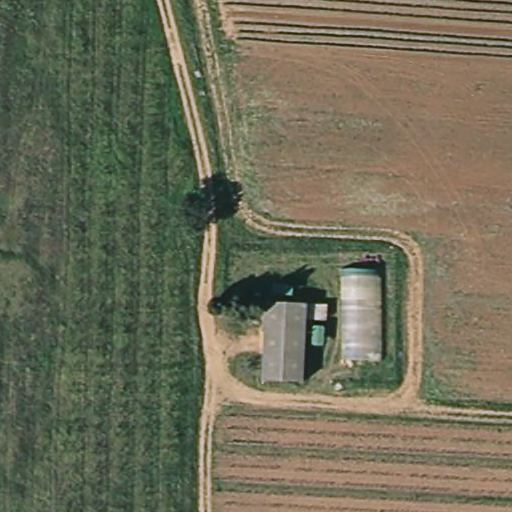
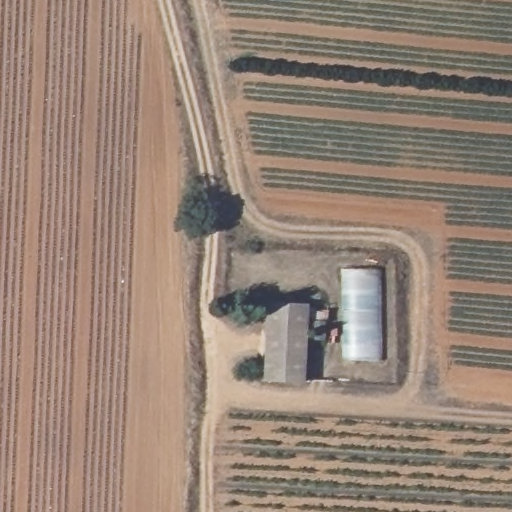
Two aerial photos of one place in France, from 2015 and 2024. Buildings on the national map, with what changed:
unchanged [(382,270),(382,360),(340,358),(341,270),(382,270)]
unchanged [(267,387),(268,307),(309,310),(332,310),(330,326),(309,326),(308,388),(267,387)]

